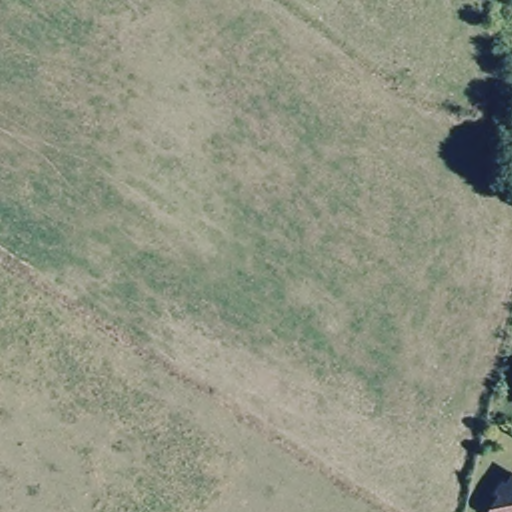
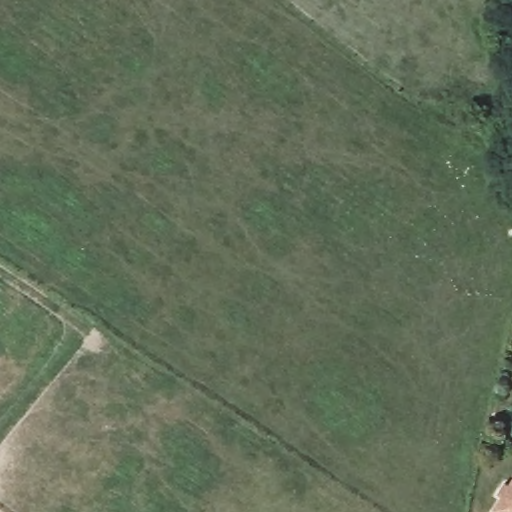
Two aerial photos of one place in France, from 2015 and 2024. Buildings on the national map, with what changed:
unchanged [(494,512),(493,511),(502,496),(497,493),(504,482),(509,485),(512,480),(512,512),(494,512)]

